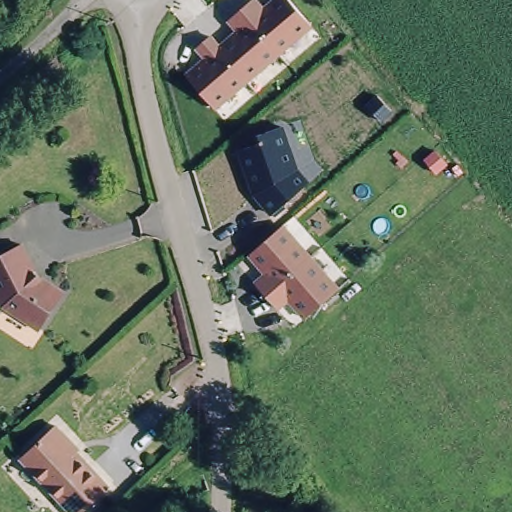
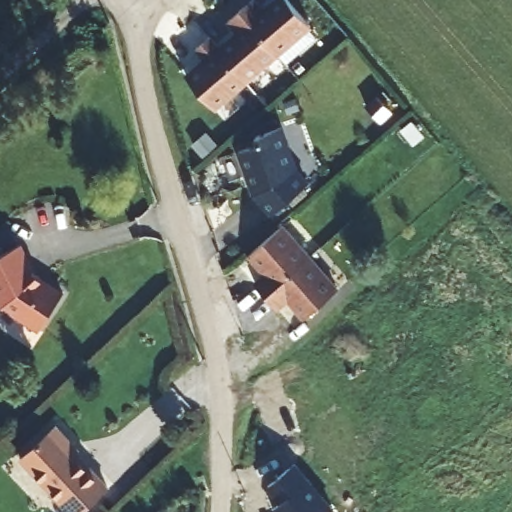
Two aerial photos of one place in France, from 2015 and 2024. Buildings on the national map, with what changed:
unchanged [(185,74),(204,59),(196,49),(210,35),(219,45),(235,30),(227,21),(250,0),(258,0),(264,6),(270,0),(289,0),(312,26),(215,110),(185,74)]
unchanged [(252,195),(237,151),(260,143),(257,135),(284,126),(300,170),(312,181),(312,182),(270,215),(252,195)]
unchanged [(254,282),(264,273),(250,255),(282,225),(284,224),(340,288),(305,320),(289,300),(277,309),(254,282)]
unchanged [(39,278),(64,296),(42,331),(3,307),(0,300),(0,258),(23,247),(39,278)]
unchanged [(72,451),(111,493),(90,512),(66,512),(21,462),(59,428),(76,447),(72,451)]
new [(274,512),(272,510),(281,503),(268,486),(295,462),(335,510),(333,512),(274,512)]

